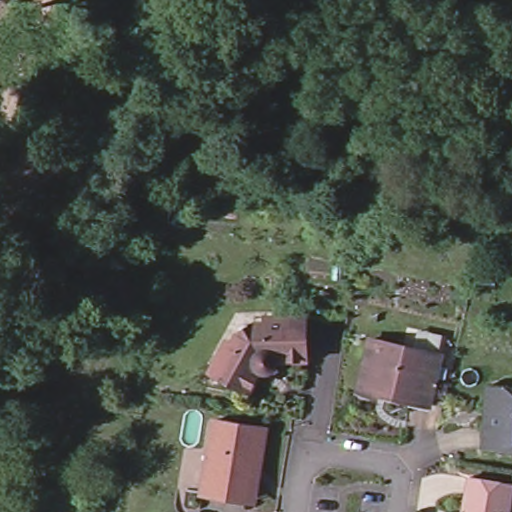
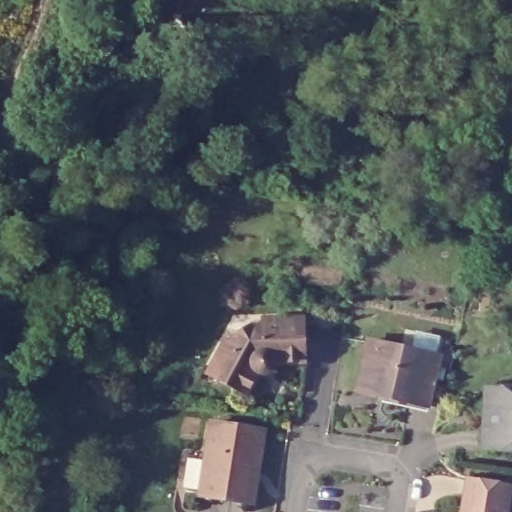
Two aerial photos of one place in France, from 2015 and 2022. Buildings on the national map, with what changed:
unchanged [(209,373),(227,338),(233,342),(242,322),(267,321),(267,316),(307,315),(308,360),(277,360),(276,367),(274,370),(271,372),(267,373),(263,373),(259,372),(247,395),(209,373)]
unchanged [(368,341),(442,358),(430,408),(357,391),(368,341)]
unchanged [(485,386),(493,387),(512,388),(512,449),(481,447),(482,426),(485,386)]
unchanged [(244,503),(200,497),(210,423),(262,430),(256,472),(251,504),(244,503)]
unchanged [(463,511),(456,510),(461,476),(505,483),(501,512),(463,512),(463,511)]

